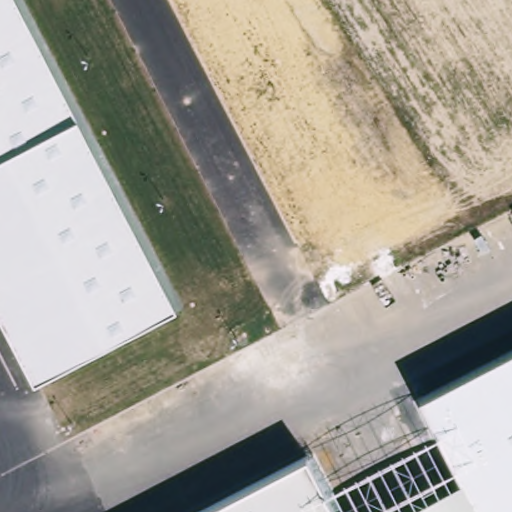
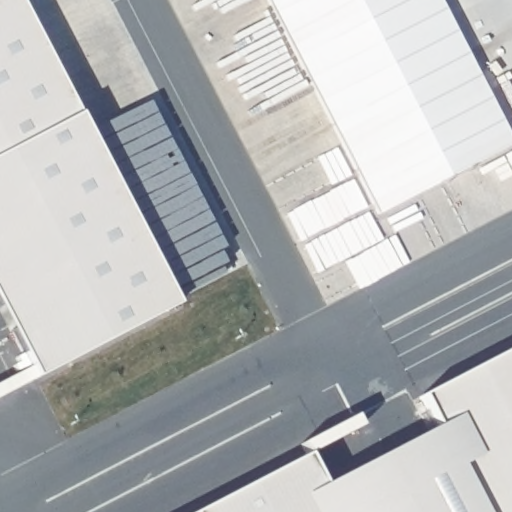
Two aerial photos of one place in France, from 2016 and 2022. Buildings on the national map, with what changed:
unchanged [(177,307),(35,381),(0,313),(0,0),(18,0),(78,115),(177,307)]
new [(440,0),(509,133),(374,203),(268,0),(440,0)]
unchanged [(325,489),(437,432),(419,399),(512,351),(512,512),(202,512),(307,458),(325,489)]

